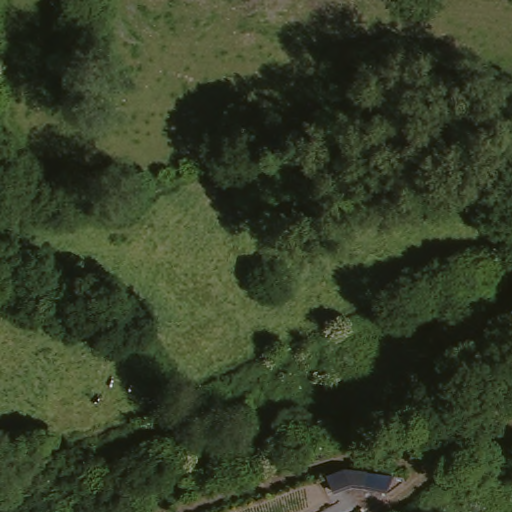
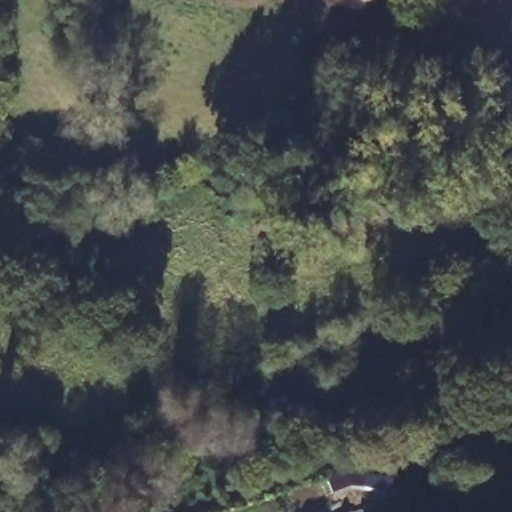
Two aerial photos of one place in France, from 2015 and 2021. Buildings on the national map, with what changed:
unchanged [(347,463),(350,464),(367,470),(362,483),(350,478),(332,482),(328,468),(347,463)]

